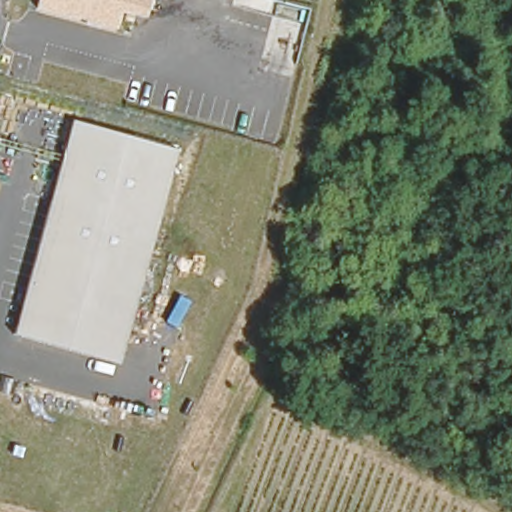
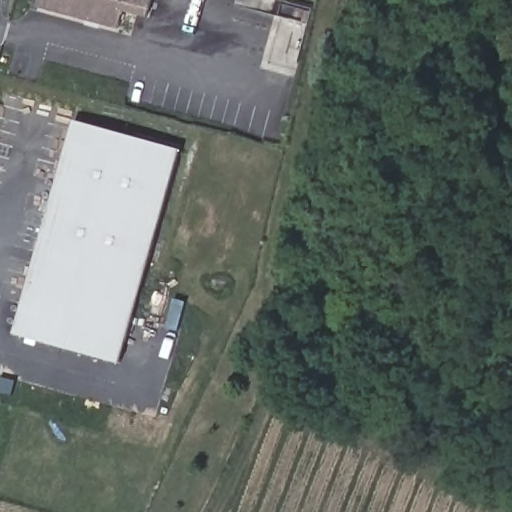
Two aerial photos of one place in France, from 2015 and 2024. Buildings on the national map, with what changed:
unchanged [(126,11),(120,30),(39,9),(41,0),(152,0),(148,18),(126,11)]
unchanged [(123,364),(18,334),(75,121),(181,150),(123,364)]

